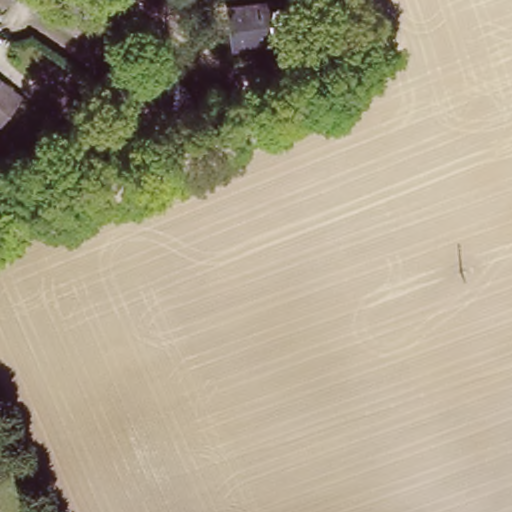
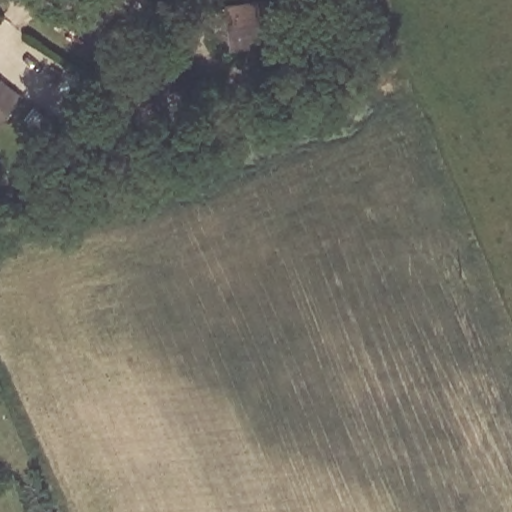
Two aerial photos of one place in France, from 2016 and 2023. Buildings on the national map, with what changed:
unchanged [(276,0),(284,0),(289,35),(238,42),(229,43),(224,6),(234,5),(276,0)]
unchanged [(0,128),(0,80),(24,99),(0,128)]
unchanged [(253,164),(204,185),(194,161),(244,141),(253,164)]

